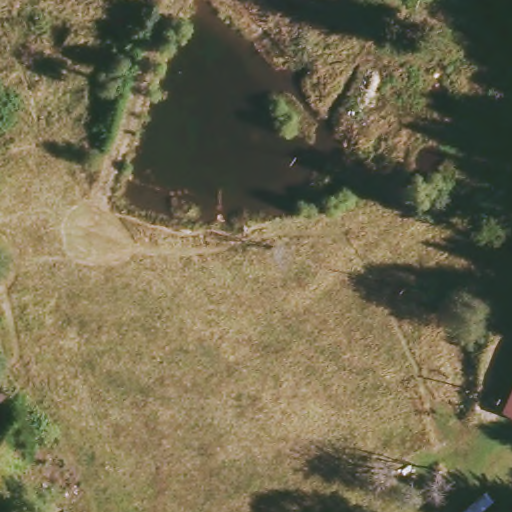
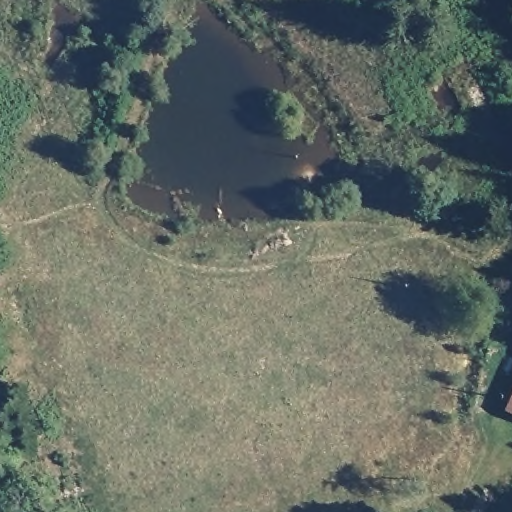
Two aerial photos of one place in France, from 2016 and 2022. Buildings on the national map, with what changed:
unchanged [(512,396),(512,414),(506,411),(512,396)]

